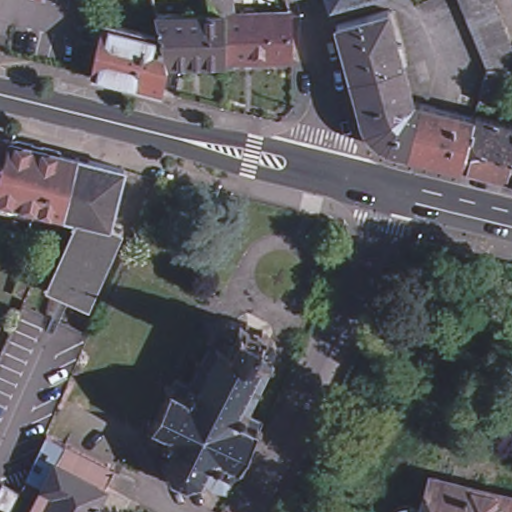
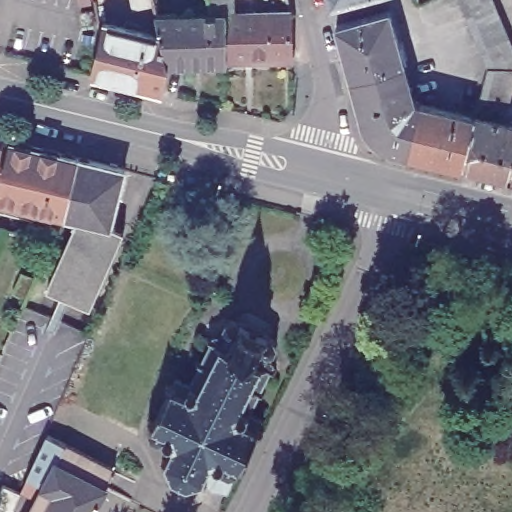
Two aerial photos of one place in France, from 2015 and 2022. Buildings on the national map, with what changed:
unchanged [(93,1),(93,0),(102,0),(103,10),(95,12),(93,1)]
unchanged [(156,15),(212,14),(209,0),(232,0),(232,14),(273,13),(270,0),(288,0),(291,12),(292,63),(225,65),(167,66),(163,42),(156,15)]
unchanged [(323,0),(348,0),(325,6),(323,0)]
unchanged [(480,64),(453,0),(488,0),(512,58),(512,65),(510,65),(482,64),(480,64)]
unchanged [(382,7),(397,62),(344,75),(330,21),(382,7)]
unchanged [(167,66),(162,92),(94,76),(105,30),(163,42),(167,66)]
unchanged [(397,62),(407,99),(414,101),(402,149),(401,151),(385,147),(372,137),(361,126),(353,112),(347,85),(344,75),(397,62)]
unchanged [(500,104),(474,97),(472,96),(480,64),(482,64),(510,65),(500,104)]
unchanged [(402,149),(414,101),(424,104),(469,115),(456,164),(426,157),(413,154),(401,151),(402,149)]
unchanged [(486,171),(485,172),(456,164),(469,115),(470,111),(512,122),(512,145),(504,175),(486,171)]
unchanged [(13,141),(80,157),(65,216),(0,200),(0,138),(13,141)]
unchanged [(504,175),(512,145),(512,178),(504,177),(504,175)]
unchanged [(113,227),(80,220),(65,216),(80,157),(127,169),(113,227)]
unchanged [(125,233),(92,307),(50,288),(80,220),(113,227),(125,233)]
unchanged [(230,480),(226,488),(212,487),(205,478),(203,479),(200,476),(188,478),(187,484),(183,483),(183,478),(172,474),(169,477),(165,473),(169,471),(165,459),(160,458),(160,454),(166,455),(172,442),(160,437),(157,438),(150,435),(149,431),(146,430),(150,421),(145,417),(147,414),(152,417),(168,386),(163,383),(165,380),(170,382),(175,372),(189,379),(197,360),(193,357),(195,353),(200,356),(208,337),(204,335),(205,331),(210,332),(211,331),(223,326),(222,323),(225,317),(230,315),(237,318),(239,316),(243,318),(247,317),(262,324),(263,328),(265,330),(267,330),(267,333),(273,336),(275,342),(272,347),(270,348),(273,362),(270,362),(275,365),(273,370),(268,367),(260,385),(264,387),(262,391),(257,388),(247,408),(262,416),(258,424),(262,426),(260,431),(256,428),(240,460),(245,462),(242,466),(238,463),(230,480)]
unchanged [(117,473),(97,512),(33,512),(43,491),(30,484),(27,483),(47,440),(49,441),(63,448),(65,447),(117,473)]
demolished [(512,499),(512,512),(387,512),(388,511),(392,507),(397,505),(400,504),(418,508),(427,477),(512,499)]
unchanged [(0,507),(0,485),(16,492),(8,510),(0,507)]

